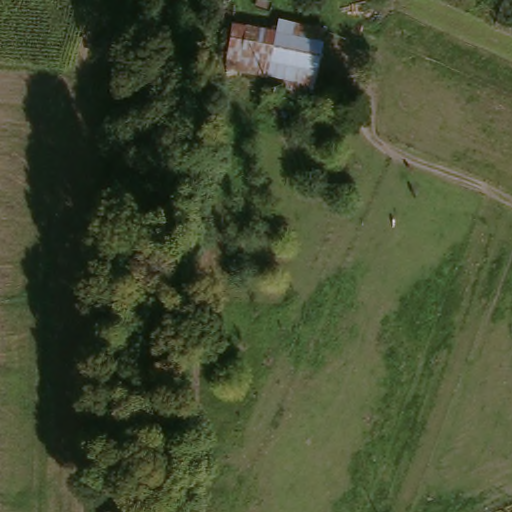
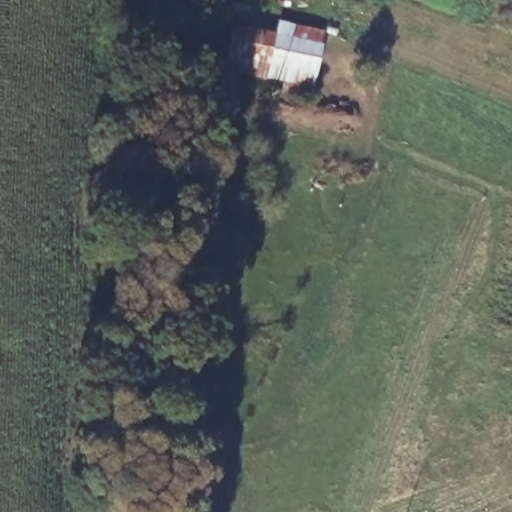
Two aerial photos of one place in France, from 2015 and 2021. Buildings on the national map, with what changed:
unchanged [(265,88),(272,46),(252,44),(256,29),(320,41),(310,96),(265,88)]

